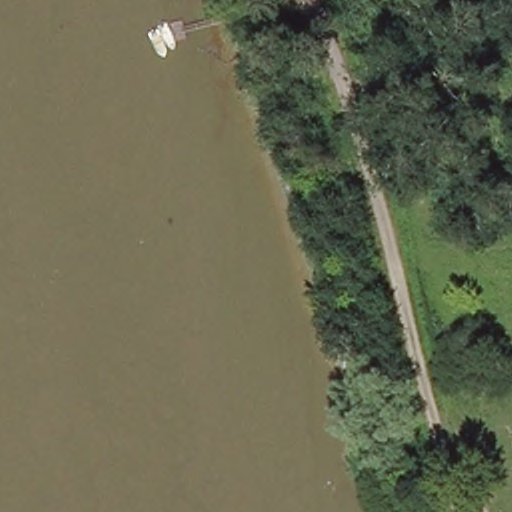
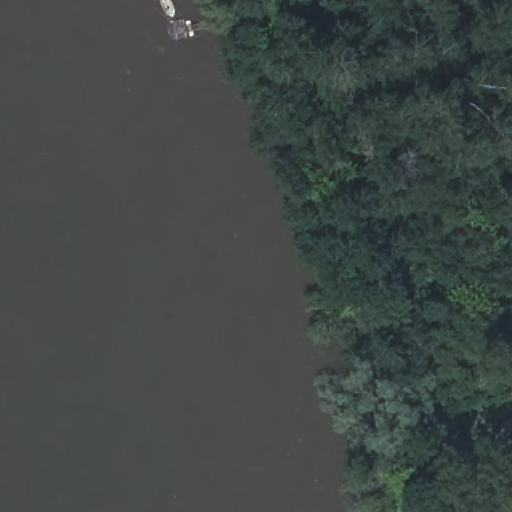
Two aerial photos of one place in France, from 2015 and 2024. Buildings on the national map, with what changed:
[]

